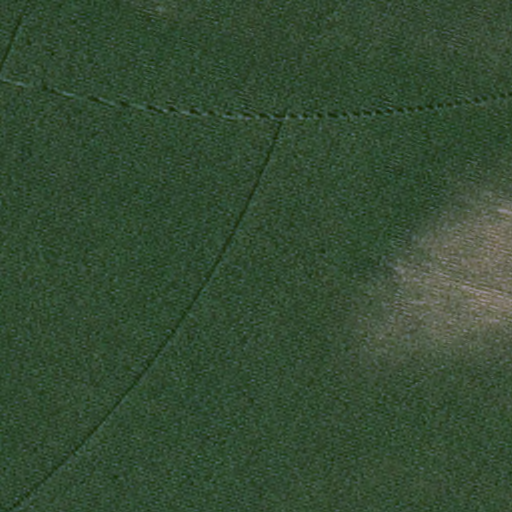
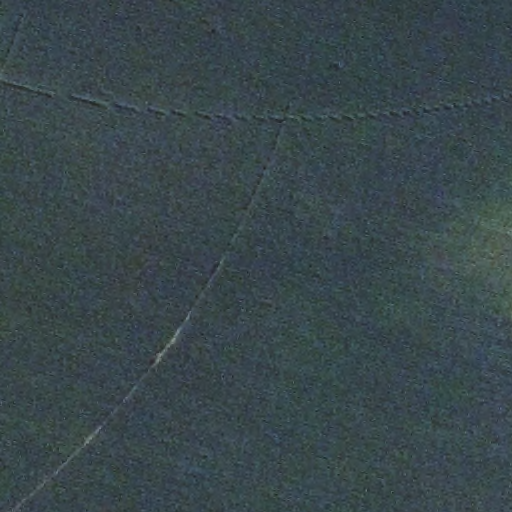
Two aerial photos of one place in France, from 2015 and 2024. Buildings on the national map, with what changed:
[]

